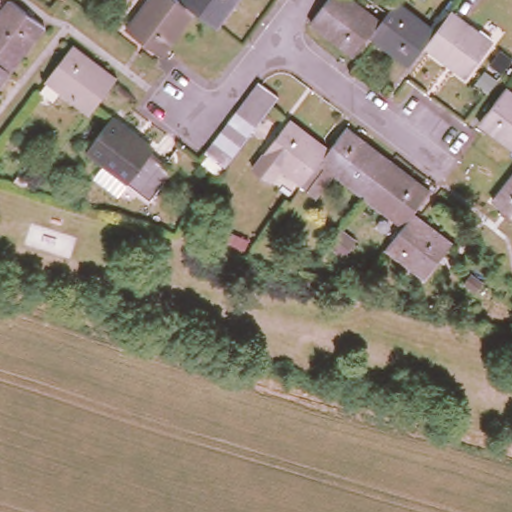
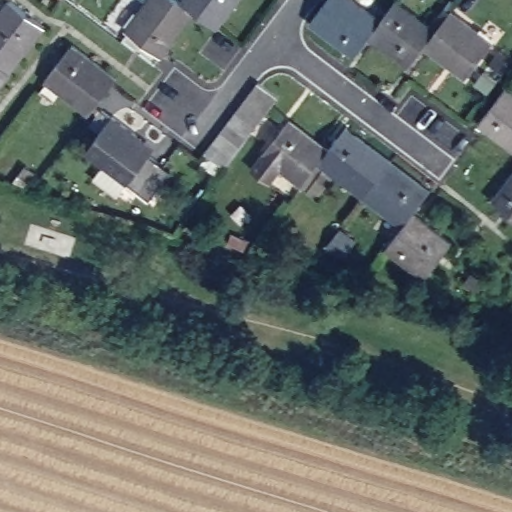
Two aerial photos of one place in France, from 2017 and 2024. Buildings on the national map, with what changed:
unchanged [(176,0),(181,4),(192,13),(160,57),(125,31),(147,0),(176,0)]
unchanged [(192,13),(181,4),(184,0),(237,0),(215,30),(192,13)]
unchanged [(368,36),(355,54),(311,21),(327,0),(357,0),(381,19),(368,36)]
unchanged [(386,12),(395,0),(430,27),(444,6),(449,10),(442,20),(423,45),(420,50),(408,65),(375,41),(368,36),(381,19),(386,12)]
unchanged [(0,62),(0,15),(11,1),(45,27),(11,71),(0,62)]
unchanged [(467,74),(454,65),(452,67),(423,45),(442,20),(449,10),(450,10),(492,41),(467,74)]
unchanged [(46,77),(72,42),(115,75),(109,82),(96,101),(90,109),(60,87),(55,96),(41,87),(48,78),(46,77)]
unchanged [(11,71),(0,86),(0,62),(11,71)]
unchanged [(209,142),(218,130),(225,121),(233,110),(241,99),(249,89),(257,79),(260,81),(277,94),(269,105),(266,108),(261,115),(253,125),(245,136),(238,146),(229,157),(222,167),(202,152),(209,142)]
unchanged [(505,86),(512,91),(512,146),(479,121),(505,86)]
unchanged [(172,166),(150,196),(138,186),(130,197),(112,183),(120,172),(90,150),(115,117),(157,149),(155,152),(172,166)]
unchanged [(306,185),(270,157),(296,123),(332,150),(306,185)]
unchanged [(322,196),(306,185),(332,150),(350,127),(392,160),(367,195),(338,174),(322,196)]
unchanged [(392,160),(432,190),(416,212),(407,225),(367,195),(392,160)]
unchanged [(512,168),(512,215),(490,198),(512,168)]
unchanged [(455,242),(429,277),(390,247),(407,225),(416,212),(455,242)]
unchanged [(457,283),(464,275),(477,285),(470,293),(457,283)]

